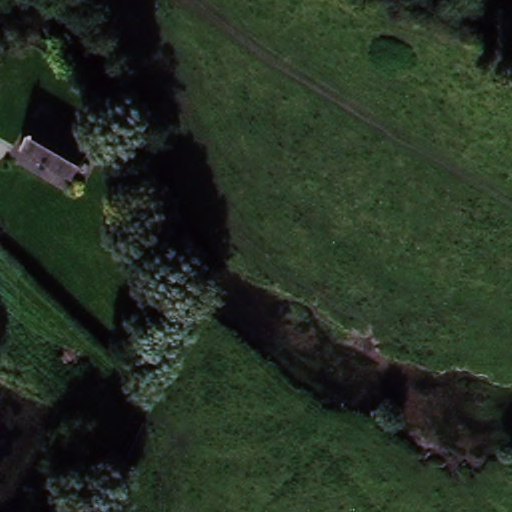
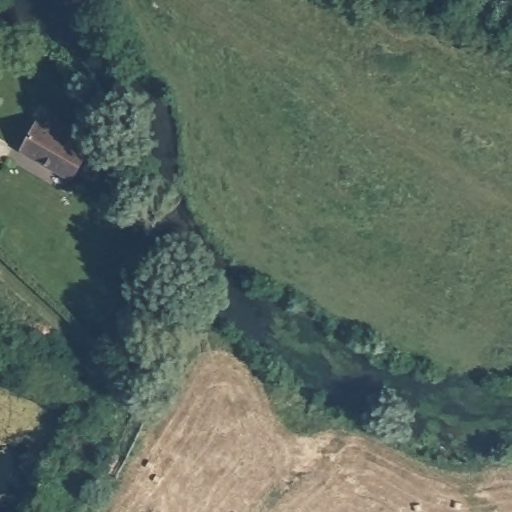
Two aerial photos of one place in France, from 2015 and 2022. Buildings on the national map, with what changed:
unchanged [(75,181),(18,155),(34,119),(90,154),(75,181)]

